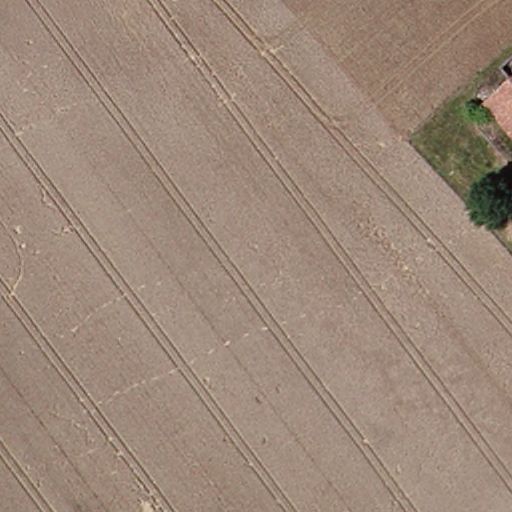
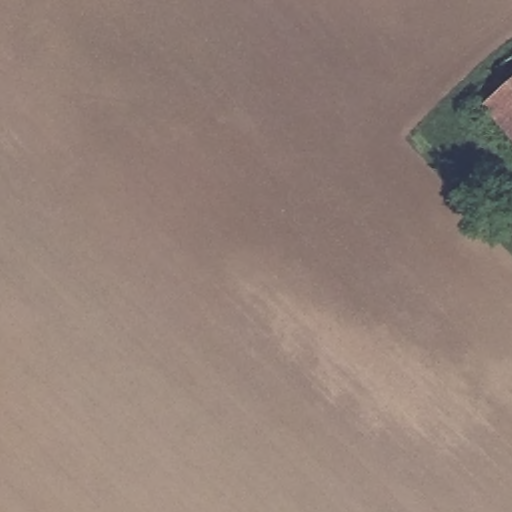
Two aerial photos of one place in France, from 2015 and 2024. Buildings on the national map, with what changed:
unchanged [(496,101),(512,88),(512,121),(496,101)]

